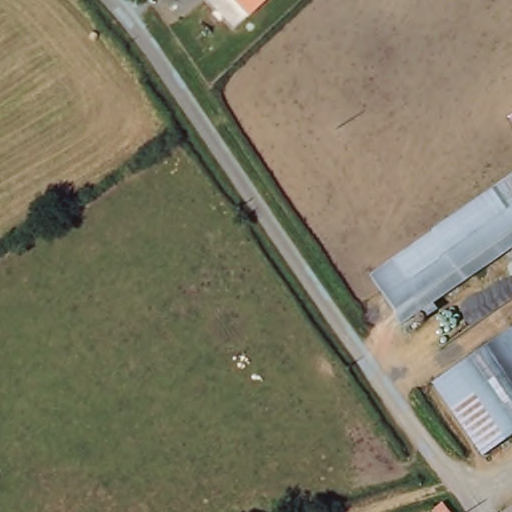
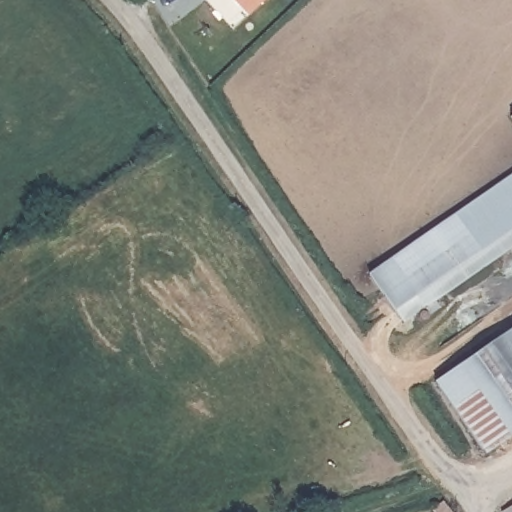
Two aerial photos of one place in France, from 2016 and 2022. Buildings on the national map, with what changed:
unchanged [(246,15),(231,0),(260,0),(246,15)]
unchanged [(512,219),(507,211),(490,188),(512,173),(512,219)]
unchanged [(512,242),(416,309),(383,262),(490,188),(512,219),(512,242)]
unchanged [(430,385),(512,324),(512,431),(481,453),(473,443),(430,385)]
unchanged [(512,512),(498,512),(512,503),(512,512)]

